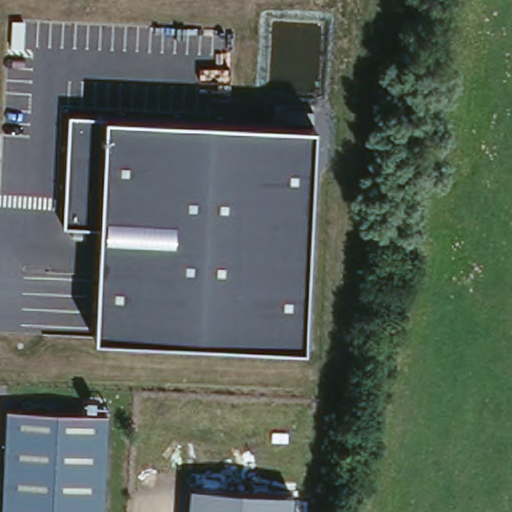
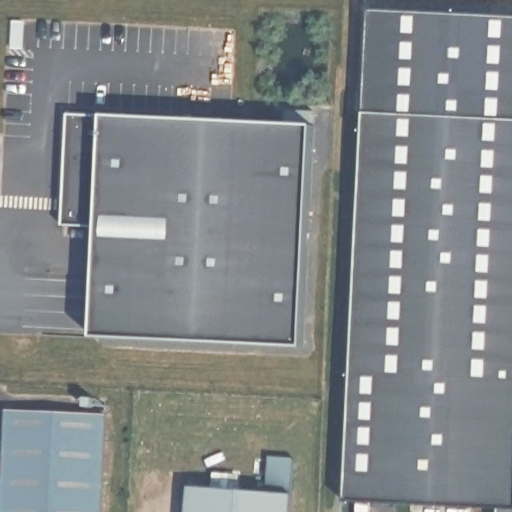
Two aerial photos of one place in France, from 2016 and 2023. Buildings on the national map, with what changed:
new [(512,512),(495,512),(495,504),(344,499),(365,113),(512,119),(512,512)]
unchanged [(314,128),(302,348),(95,338),(99,226),(63,226),(69,118),(104,120),(314,128)]
unchanged [(7,407),(111,413),(104,512),(1,512),(7,407)]
unchanged [(186,490),(265,492),(268,456),(296,457),(292,512),(184,512),(186,490)]

